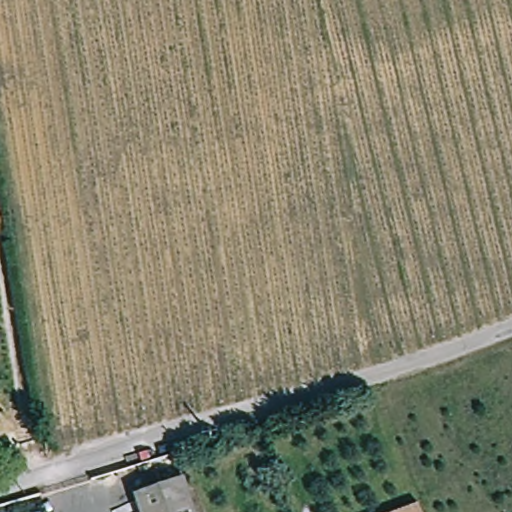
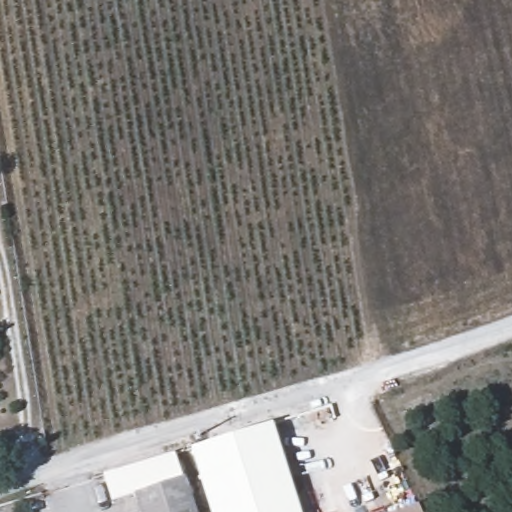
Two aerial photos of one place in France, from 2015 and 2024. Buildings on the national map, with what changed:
new [(210,512),(191,450),(273,423),(300,512),(210,512)]
new [(133,489),(135,496),(111,503),(103,476),(175,453),(181,473),(133,489)]
unchanged [(181,473),(196,512),(141,512),(133,489),(181,473)]
unchanged [(423,512),(390,512),(419,498),(423,512)]

